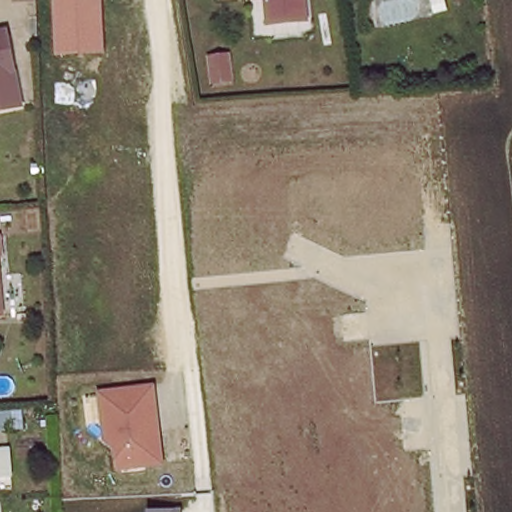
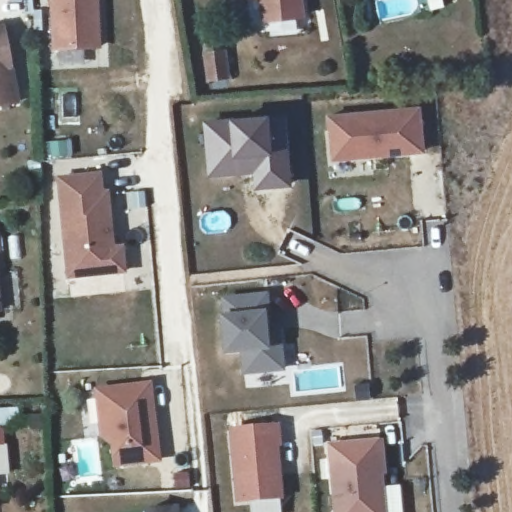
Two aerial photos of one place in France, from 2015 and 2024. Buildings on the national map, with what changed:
unchanged [(23,1),(3,4),(3,0),(23,0),(23,1)]
unchanged [(100,50),(53,51),(49,0),(98,0),(100,50)]
unchanged [(303,12),(266,15),(265,0),(302,0),(303,12)]
unchanged [(13,66),(17,103),(0,105),(0,28),(7,27),(13,66)]
new [(333,161),(328,115),(423,106),(427,153),(333,161)]
new [(257,188),(256,173),(210,175),(206,121),(234,119),(271,115),(286,116),(292,185),(257,188)]
new [(65,279),(55,176),(101,172),(103,191),(108,191),(114,245),(123,245),(125,273),(65,279)]
unchanged [(3,257),(0,258),(0,236),(1,236),(3,257)]
unchanged [(0,314),(0,274),(5,313),(0,314)]
new [(284,372),(241,376),(237,354),(222,355),(219,315),(220,296),(268,291),(268,310),(270,326),(280,326),(284,372)]
unchanged [(161,463),(112,467),(108,442),(101,443),(95,387),(152,382),(161,463)]
new [(282,446),(277,445),(282,500),(236,503),(228,427),(281,422),(282,446)]
new [(333,512),(326,443),(381,438),(385,512),(333,512)]
unchanged [(144,512),(144,508),(178,506),(179,512),(144,512)]

